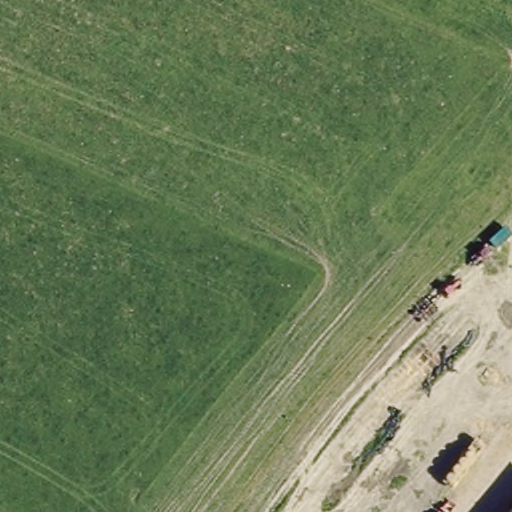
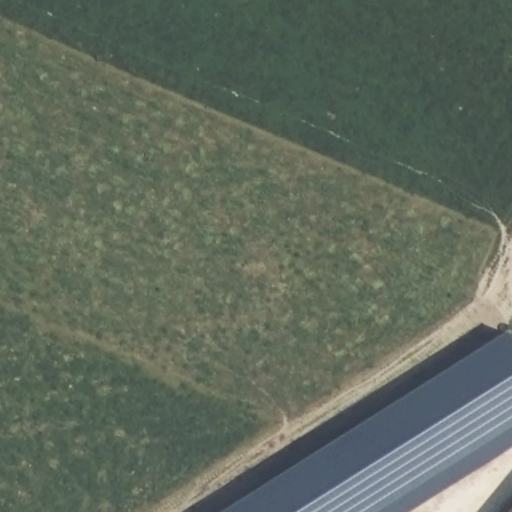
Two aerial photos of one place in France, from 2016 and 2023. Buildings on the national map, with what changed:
new [(512,340),(512,449),(411,512),(225,512),(508,334),(512,340)]
unchanged [(512,512),(504,512),(512,501),(512,512)]

